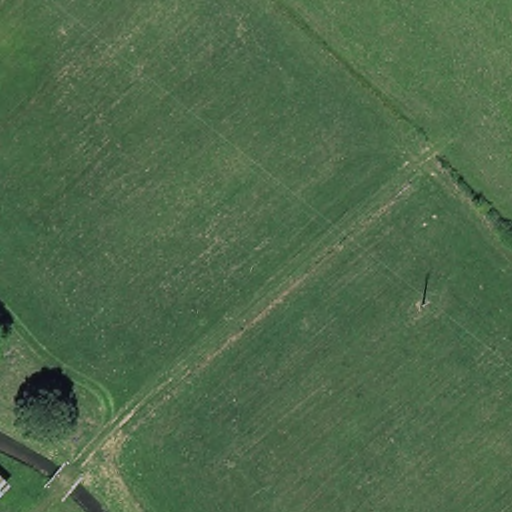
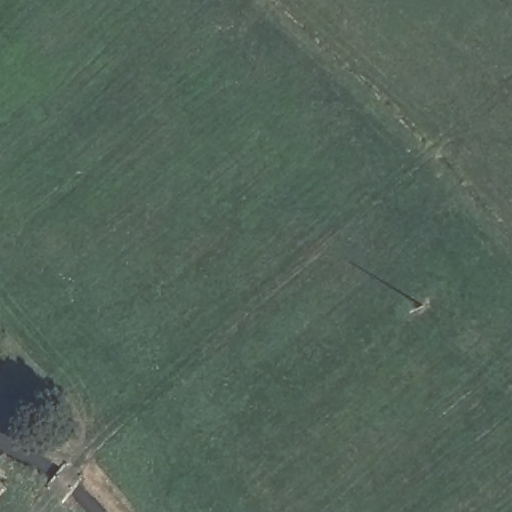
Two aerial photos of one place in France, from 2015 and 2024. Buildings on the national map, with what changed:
unchanged [(0,493),(0,477),(8,484),(0,493)]

